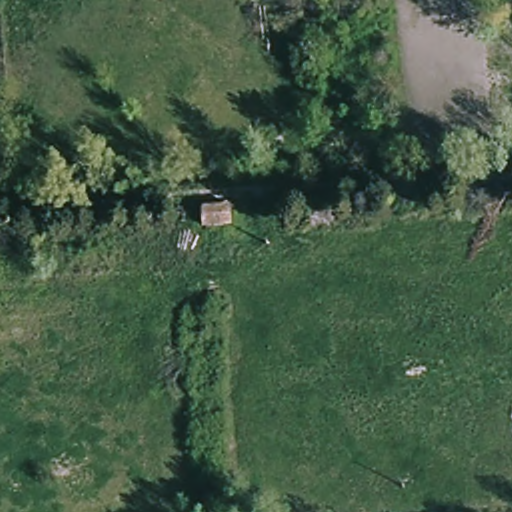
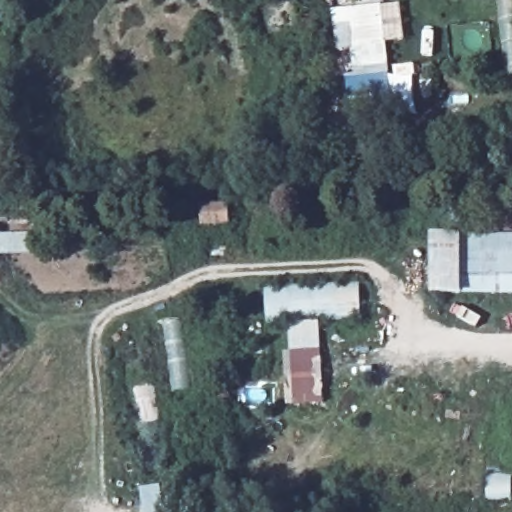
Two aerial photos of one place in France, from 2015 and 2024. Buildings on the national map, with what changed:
new [(401,43),(387,44),(389,75),(354,77),(352,51),(337,52),(335,11),(399,6),(401,43)]
unchanged [(222,228),(221,209),(232,206),(232,227),(222,228)]
new [(512,234),(512,295),(462,295),(431,296),(431,234),(459,234),(512,234)]
new [(30,235),(31,254),(0,255),(0,236),(30,235)]
new [(359,281),(361,317),(267,323),(264,288),(359,281)]
new [(319,322),(324,405),(295,407),(293,392),(287,393),(286,381),(292,379),(289,324),(319,322)]

